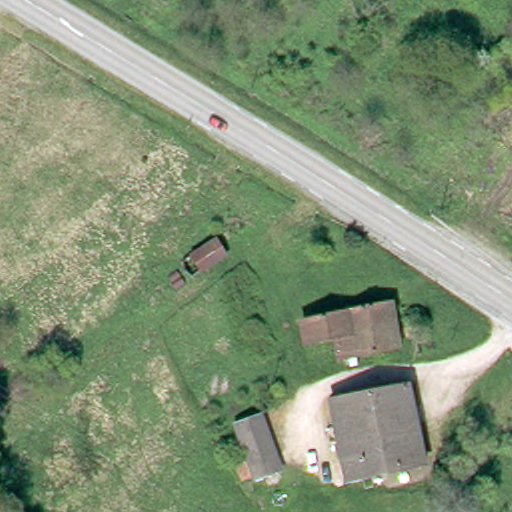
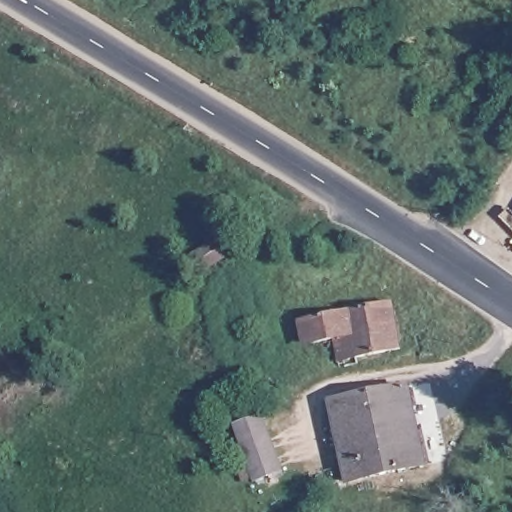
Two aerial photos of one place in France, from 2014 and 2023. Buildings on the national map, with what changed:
unchanged [(305,352),(303,339),(299,316),(334,305),(386,296),(396,341),(348,350),(334,352),(333,348),(305,352)]
unchanged [(409,383),(424,460),(349,478),(332,399),(409,383)]
unchanged [(248,480),(228,420),(263,408),(281,465),(248,480)]

